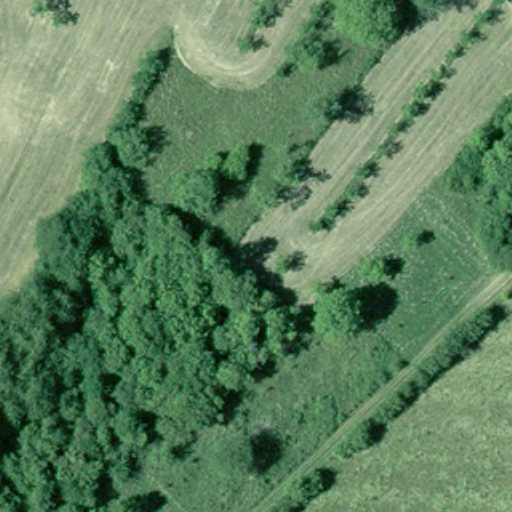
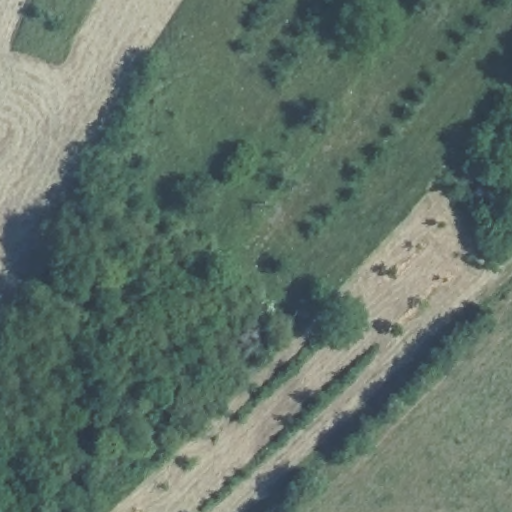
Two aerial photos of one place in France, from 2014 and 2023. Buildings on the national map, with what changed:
[]

